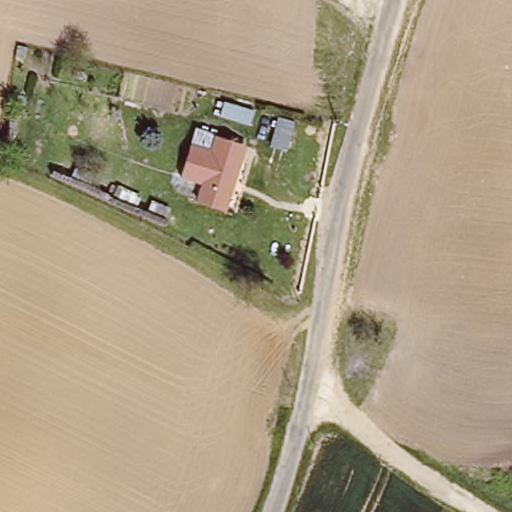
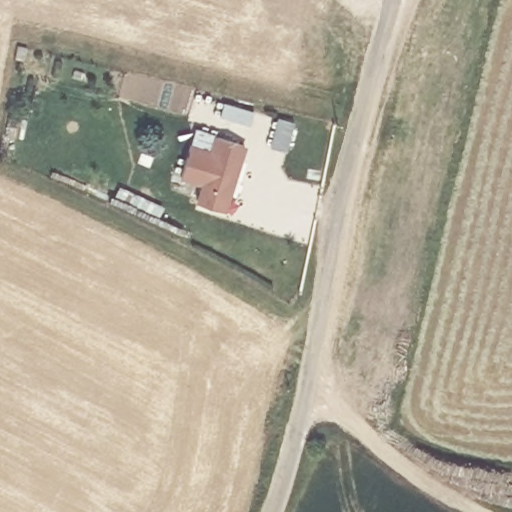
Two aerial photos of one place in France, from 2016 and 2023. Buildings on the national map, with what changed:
unchanged [(227,214),(197,202),(202,187),(183,178),(199,129),(250,147),(227,214)]

